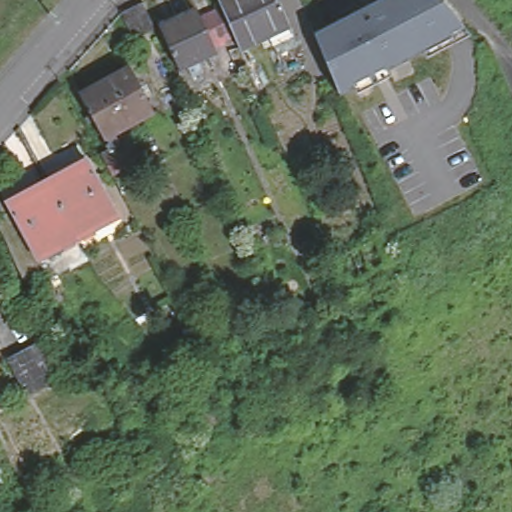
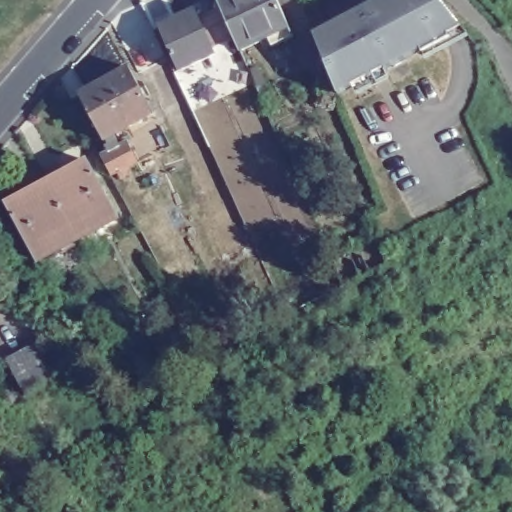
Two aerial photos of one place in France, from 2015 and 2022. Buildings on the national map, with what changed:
unchanged [(157,30),(192,14),(196,22),(217,14),(215,10),(213,4),(222,0),(271,0),(287,40),(238,61),(230,42),(210,52),(213,58),(175,74),(157,30)]
unchanged [(439,0),(467,36),(338,100),(311,36),(382,0),(439,0)]
unchanged [(148,32),(128,42),(120,23),(140,13),(148,32)]
unchanged [(108,154),(102,141),(78,97),(127,69),(152,113),(120,132),(127,145),(136,163),(110,177),(100,158),(108,154)]
unchanged [(37,189),(76,166),(107,223),(66,245),(37,189)]
unchanged [(0,213),(0,208),(37,189),(66,245),(27,265),(0,213)]
unchanged [(22,403),(4,366),(33,352),(52,389),(22,403)]

